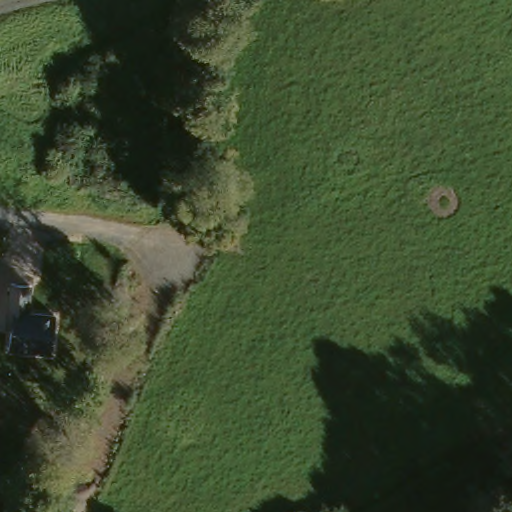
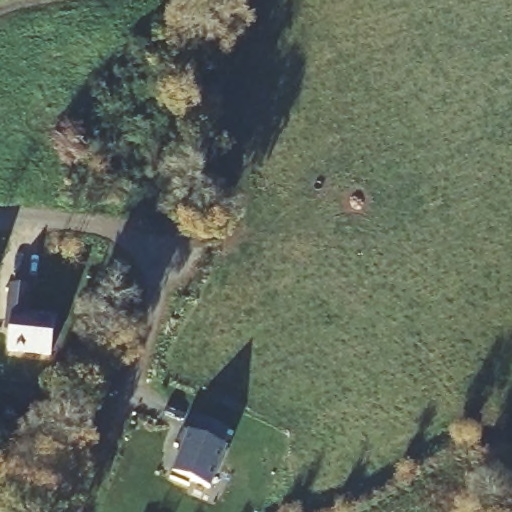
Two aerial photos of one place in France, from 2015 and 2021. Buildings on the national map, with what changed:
unchanged [(18,295),(16,323),(45,324),(44,361),(1,360),(2,323),(0,323),(0,295),(18,295)]
new [(228,430),(221,446),(225,447),(208,487),(193,482),(191,486),(169,478),(181,447),(175,444),(182,428),(194,432),(201,417),(228,430)]
new [(228,429),(221,445),(226,447),(209,487),(191,480),(188,485),(171,476),(182,449),(176,445),(184,428),(193,432),(199,418),(228,429)]

